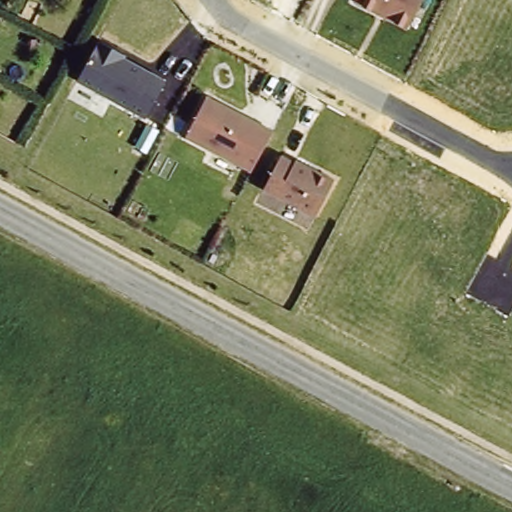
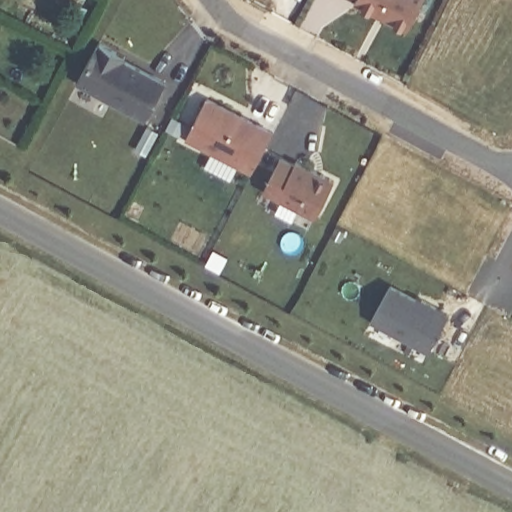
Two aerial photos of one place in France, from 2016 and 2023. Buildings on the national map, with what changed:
unchanged [(422,0),(406,31),(354,2),(354,0),(422,0)]
unchanged [(76,79),(99,38),(166,79),(145,116),(76,79)]
unchanged [(207,96),(272,133),(252,176),(185,139),(207,96)]
unchanged [(281,158),(292,165),(295,160),(331,179),(314,216),(266,190),(281,158)]
new [(392,284),(420,299),(421,297),(451,313),(431,350),(373,320),(392,284)]

